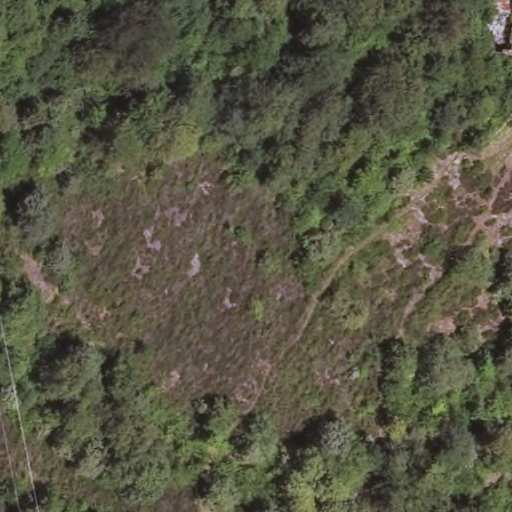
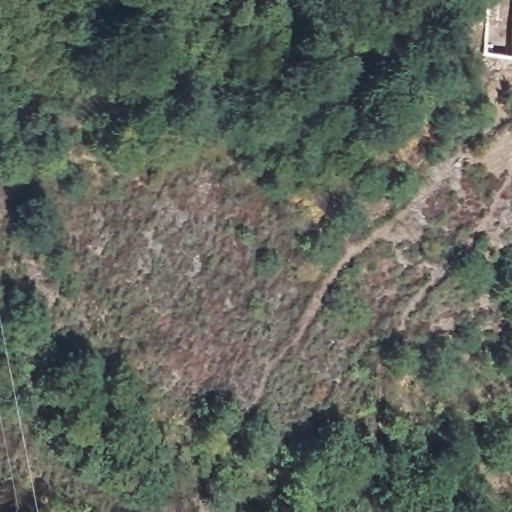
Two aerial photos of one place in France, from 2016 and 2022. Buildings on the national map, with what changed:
unchanged [(490,0),(512,0),(512,57),(482,55),(490,0)]

